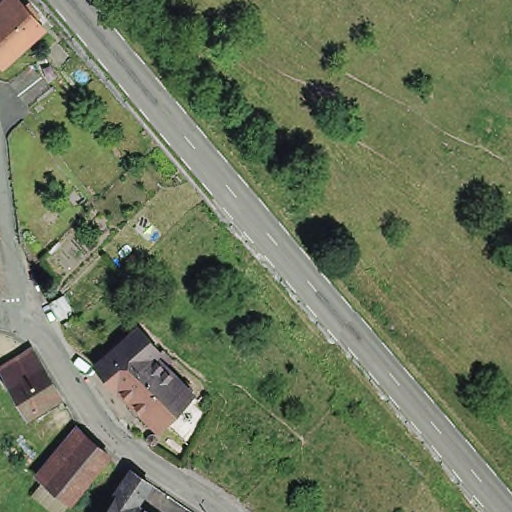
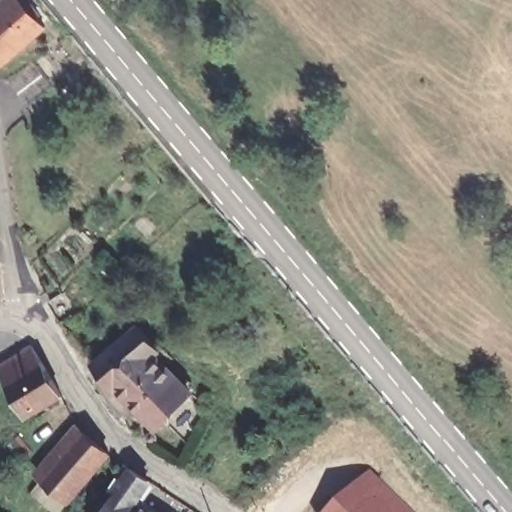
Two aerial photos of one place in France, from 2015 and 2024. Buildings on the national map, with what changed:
unchanged [(0,65),(0,7),(8,0),(12,0),(38,30),(0,65)]
unchanged [(48,303),(66,286),(81,301),(59,320),(48,303)]
unchanged [(150,430),(108,388),(88,370),(132,331),(153,353),(154,352),(165,361),(156,370),(183,396),(150,430)]
unchanged [(2,372),(36,353),(45,368),(65,401),(29,420),(11,387),(2,372)]
unchanged [(65,502),(39,482),(80,432),(105,455),(65,502)]
unchanged [(288,460),(293,465),(280,479),(274,473),(288,460)]
new [(326,512),(366,469),(413,512),(326,512)]
unchanged [(112,498),(128,475),(144,485),(127,509),(131,512),(106,512),(114,500),(112,498)]

